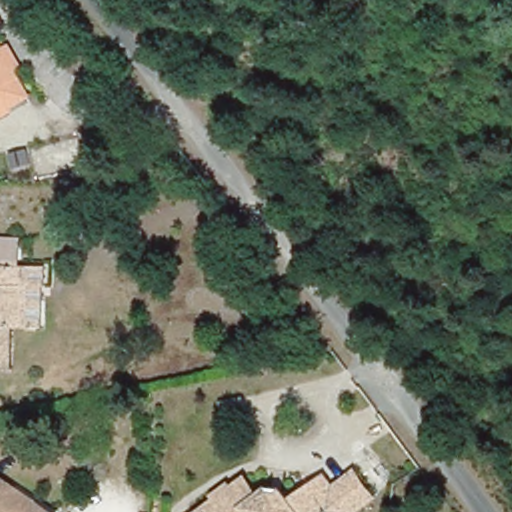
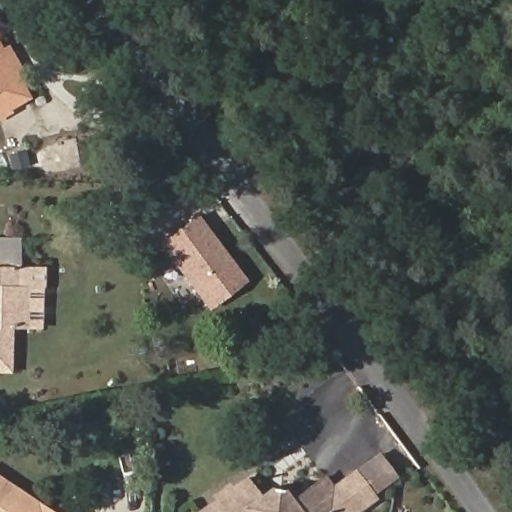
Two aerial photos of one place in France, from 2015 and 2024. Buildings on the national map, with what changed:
unchanged [(5,41),(18,65),(12,69),(27,94),(0,109),(0,44),(5,41)]
new [(197,215),(245,280),(201,312),(153,248),(197,215)]
unchanged [(0,261),(0,236),(16,236),(18,261),(0,261)]
unchanged [(13,325),(12,365),(0,365),(0,262),(19,261),(19,290),(31,290),(30,302),(30,325),(13,325)]
unchanged [(241,475),(258,494),(277,477),(293,496),(327,472),(335,485),(357,466),(376,490),(354,508),(358,512),(192,512),(195,510),(241,475)]
unchanged [(51,512),(0,512),(0,480),(51,512)]

